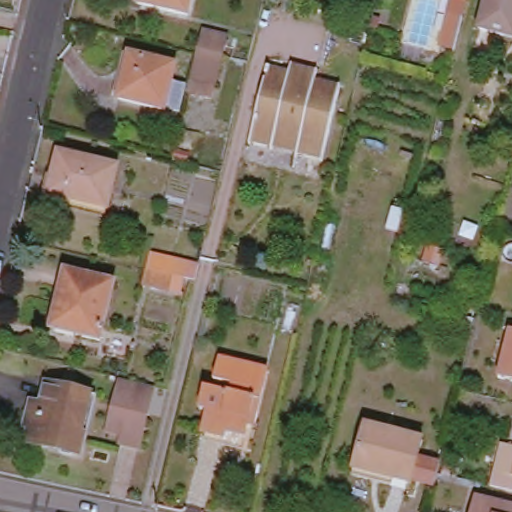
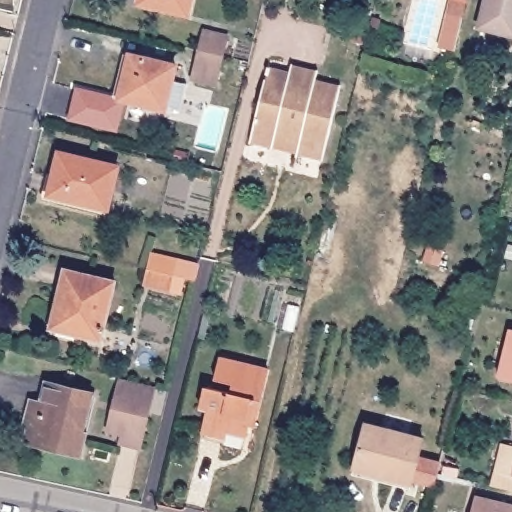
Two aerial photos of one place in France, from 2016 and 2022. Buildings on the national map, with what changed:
unchanged [(143,3),(143,0),(192,0),(189,15),(143,3)]
unchanged [(486,0),(512,0),(512,34),(480,25),(486,0)]
unchanged [(440,45),(449,11),(463,15),(455,49),(440,45)]
unchanged [(205,35),(226,41),(222,59),(216,87),(193,82),(200,54),(205,35)]
unchanged [(121,98),(131,53),(176,65),(165,108),(121,98)]
unchanged [(252,145),(267,84),(271,71),(292,76),(293,69),(304,72),(318,75),(315,85),(340,90),(323,163),(297,156),(274,151),(252,145)]
new [(79,89),(121,98),(126,99),(119,130),(72,120),(79,89)]
unchanged [(49,193),(59,151),(119,165),(108,207),(49,193)]
unchanged [(156,288),(159,273),(163,260),(180,263),(177,278),(173,293),(156,288)]
unchanged [(78,337),(80,331),(59,326),(67,293),(61,292),(66,273),(115,285),(101,342),(78,337)]
unchanged [(512,351),(512,383),(505,381),(512,351)]
unchanged [(222,429),(221,434),(203,430),(208,410),(201,408),(206,386),(230,392),(232,382),(216,378),(220,357),(269,368),(259,410),(253,409),(247,435),(222,429)]
unchanged [(32,438),(34,426),(30,425),(37,397),(46,400),(52,381),(99,392),(85,450),(32,438)]
unchanged [(120,381),(154,390),(141,450),(121,445),(125,430),(109,426),(120,381)]
unchanged [(434,489),(412,484),(411,487),(354,471),(365,430),(422,443),(418,461),(440,466),(434,489)]
unchanged [(512,506),(512,512),(473,512),(477,497),(512,506)]

